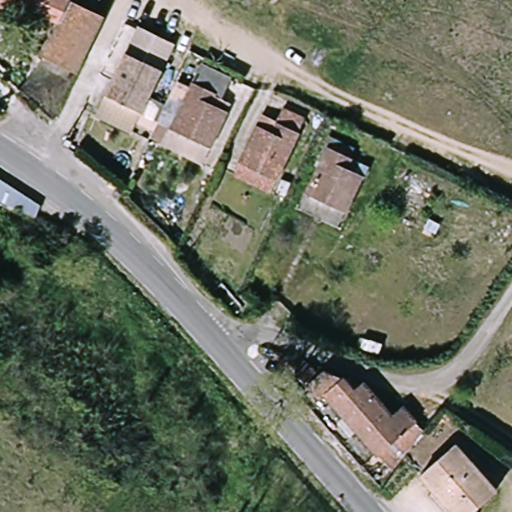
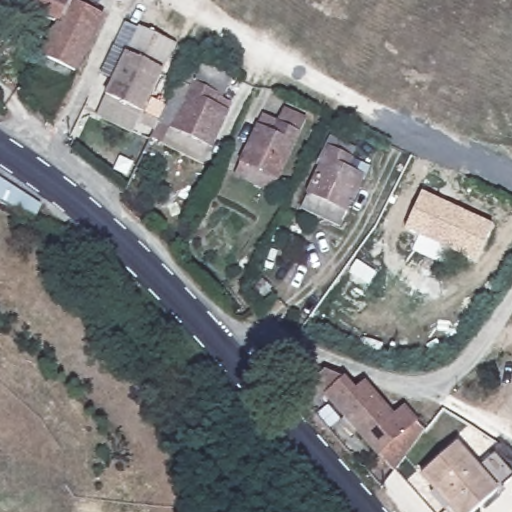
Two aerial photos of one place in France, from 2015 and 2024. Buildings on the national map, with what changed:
unchanged [(16,0),(13,9),(10,13),(0,9),(0,0),(16,0)]
unchanged [(105,15),(80,76),(43,60),(56,30),(13,9),(16,0),(97,0),(93,9),(105,15)]
unchanged [(135,134),(98,116),(104,105),(107,97),(139,29),(175,45),(151,99),(166,106),(161,116),(159,121),(144,115),(140,122),(135,134)]
unchanged [(204,63),(233,76),(224,98),(234,102),(223,131),(206,121),(209,113),(186,102),(204,63)]
unchanged [(177,120),(172,117),(175,109),(182,110),(186,102),(209,113),(206,121),(223,131),(208,164),(166,145),(177,120)]
unchanged [(264,115),(279,120),(285,109),(305,117),(292,147),(274,139),(268,147),(252,140),(264,115)]
unchanged [(237,172),(252,140),(268,147),(274,139),(292,147),(291,165),(287,164),(274,190),(237,172)]
unchanged [(309,195),(319,170),(314,165),(319,159),(323,161),(329,153),(349,161),(345,174),(362,181),(346,212),(309,195)]
unchanged [(49,211),(40,225),(0,206),(0,179),(49,211)]
new [(475,261),(407,229),(423,192),(494,225),(475,261)]
unchanged [(351,403),(363,396),(390,423),(398,416),(412,431),(374,467),(315,408),(339,388),(351,403)]
unchanged [(481,512),(448,512),(418,478),(456,445),(501,493),(481,512)]

